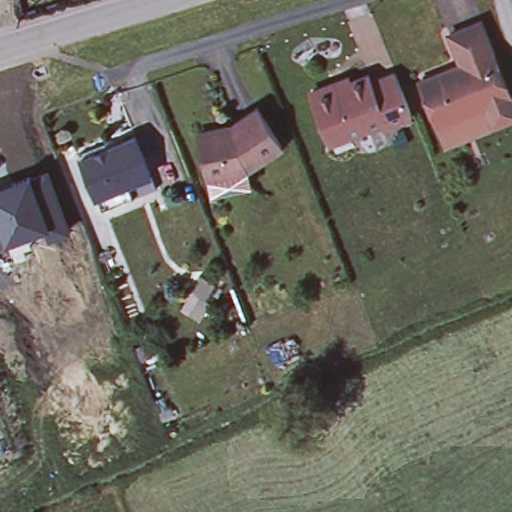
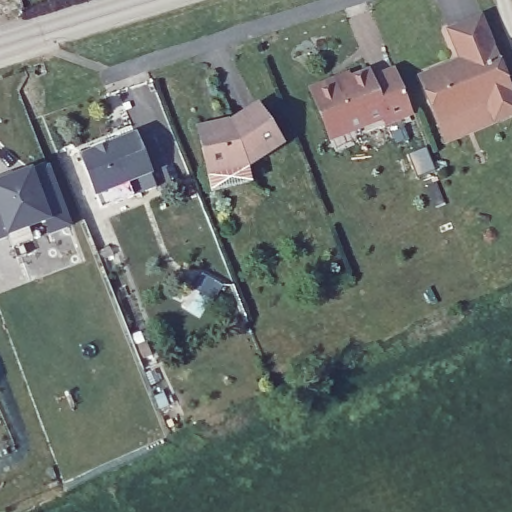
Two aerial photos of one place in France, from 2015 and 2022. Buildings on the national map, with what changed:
unchanged [(429,71),(469,55),(457,26),(487,14),(512,75),(512,111),(502,115),(454,135),(447,117),(429,71)]
unchanged [(330,127),(315,85),(336,76),(337,80),(369,68),(372,74),(397,65),(414,109),(389,119),(387,112),(350,126),(332,134),(330,127)]
unchanged [(218,187),(215,171),(205,129),(240,120),(264,105),(288,141),(254,162),(257,181),(218,187)]
unchanged [(102,200),(97,187),(82,149),(135,128),(151,165),(130,174),(135,187),(102,200)]
unchanged [(45,225),(5,242),(3,236),(0,238),(0,178),(2,177),(4,182),(48,165),(72,231),(50,237),(45,225)]

